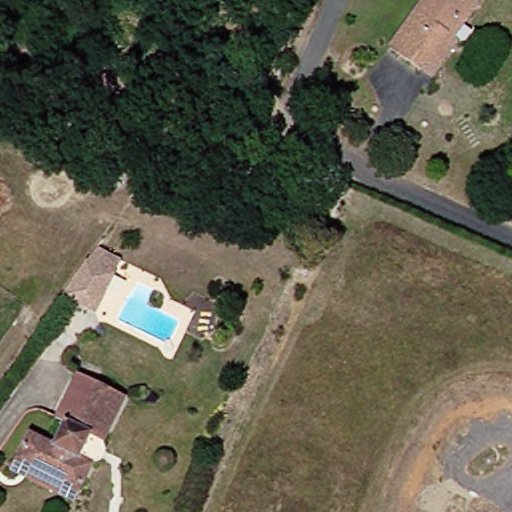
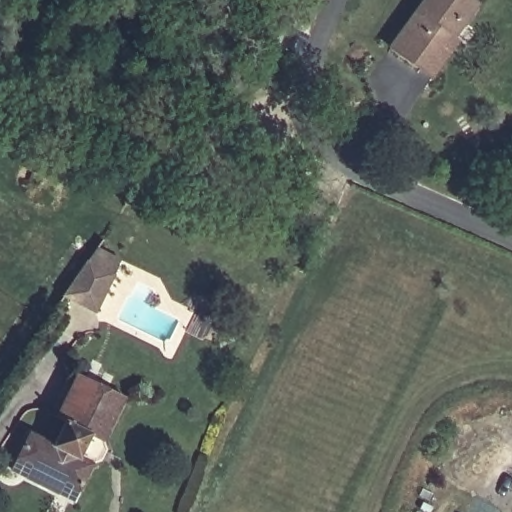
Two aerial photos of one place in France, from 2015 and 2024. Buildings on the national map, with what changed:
unchanged [(425,0),(470,0),(457,29),(464,32),(446,70),(435,65),(402,51),(425,0)]
unchanged [(101,250),(123,261),(106,299),(73,284),(101,250)]
unchanged [(143,403),(125,442),(109,435),(98,460),(113,467),(101,492),(16,455),(28,429),(59,442),(88,380),(143,403)]
unchanged [(96,503),(11,466),(16,455),(101,492),(96,503)]

